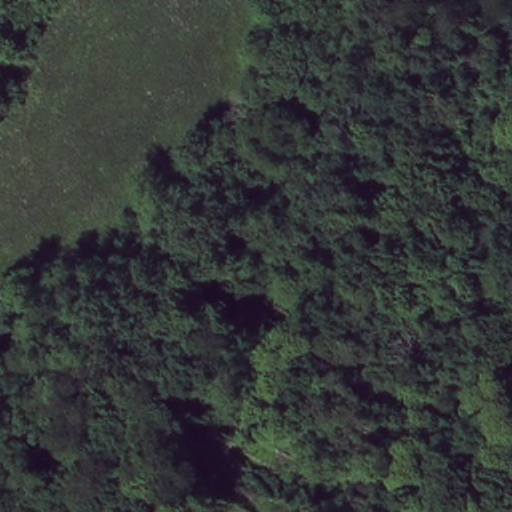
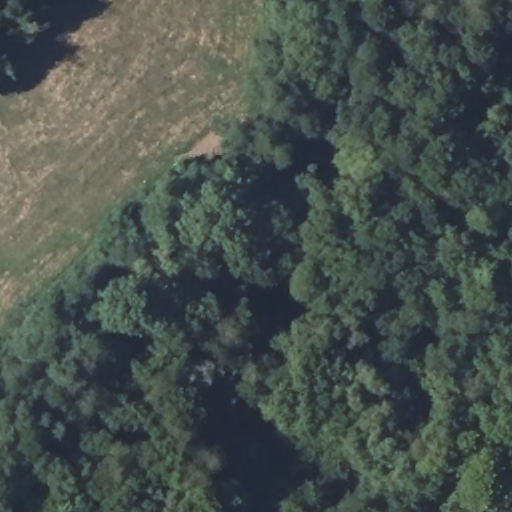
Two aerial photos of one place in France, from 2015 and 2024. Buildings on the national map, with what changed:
unchanged [(6,86),(0,93),(0,82),(6,86)]

